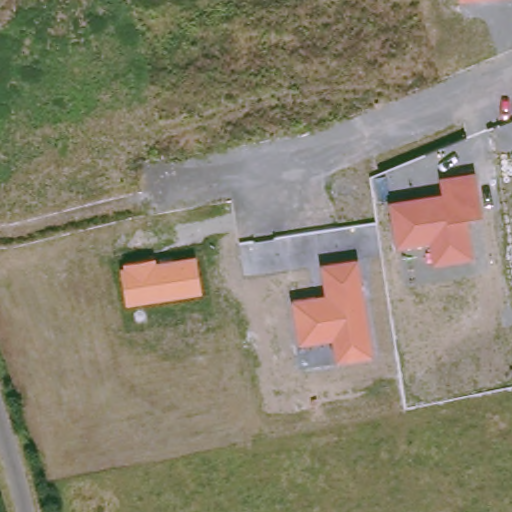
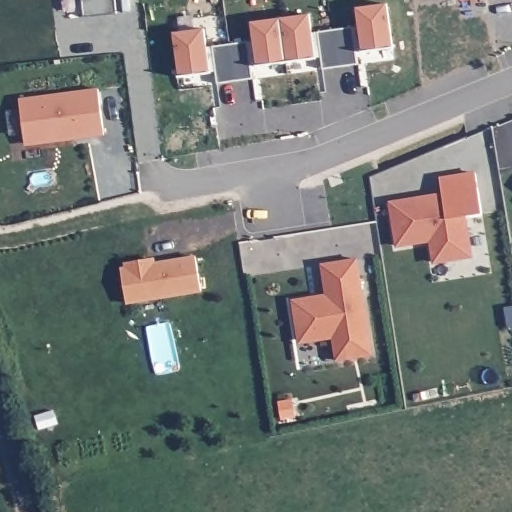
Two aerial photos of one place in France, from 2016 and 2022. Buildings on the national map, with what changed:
new [(83,16),(82,0),(116,0),(117,12),(83,16)]
unchanged [(469,0),(461,1),(461,0),(469,0)]
new [(394,50),(363,55),(357,10),(388,6),(394,50)]
new [(254,42),(251,25),(309,17),(315,61),(257,69),(251,70),(248,44),(254,42)]
new [(357,55),(353,29),(359,28),(363,55),(357,55)]
new [(323,71),(317,34),(353,29),(358,67),(323,71)]
new [(215,75),(210,75),(179,80),(173,35),(204,31),(206,49),(212,49),(215,75)]
new [(317,34),(321,60),(315,61),(312,35),(317,34)]
new [(212,49),(248,44),(253,81),(217,86),(212,49)]
new [(25,149),(19,103),(98,93),(104,139),(72,142),(50,146),(25,149)]
unchanged [(389,201),(442,194),(440,177),(477,171),(484,214),(466,217),(472,257),(434,264),(430,244),(395,244),(389,201)]
unchanged [(120,267),(124,267),(123,262),(155,257),(156,261),(196,255),(202,292),(126,305),(120,267)]
unchanged [(293,298),(325,295),(322,263),(358,258),(372,356),(336,361),(333,338),(299,344),(293,298)]

